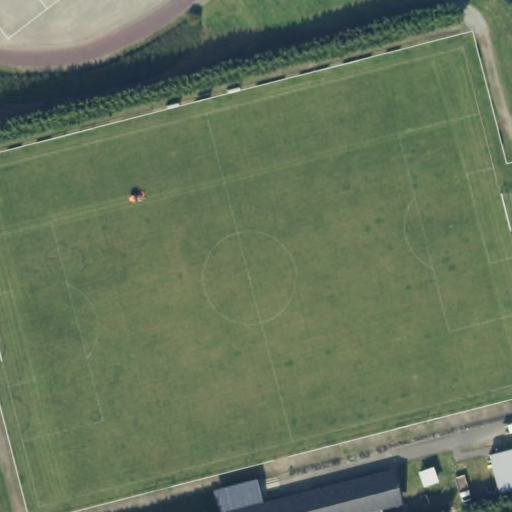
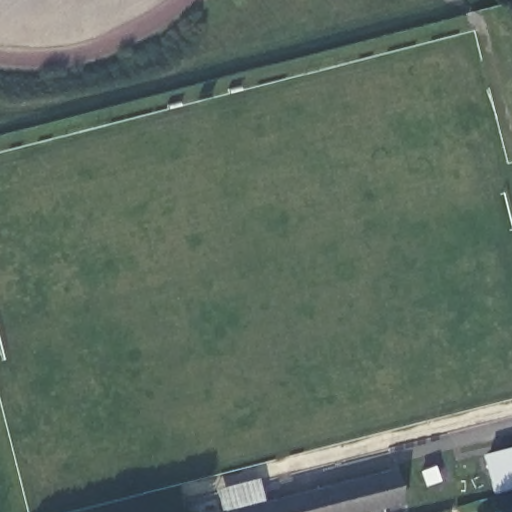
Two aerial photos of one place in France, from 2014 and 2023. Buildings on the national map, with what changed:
unchanged [(484,452),(512,445),(512,485),(494,490),(484,452)]
unchanged [(420,474),(432,469),(437,481),(425,486),(420,474)]
unchanged [(215,493),(258,483),(264,504),(382,474),(390,473),(398,506),(390,508),(381,509),(382,512),(221,512),(215,493)]

